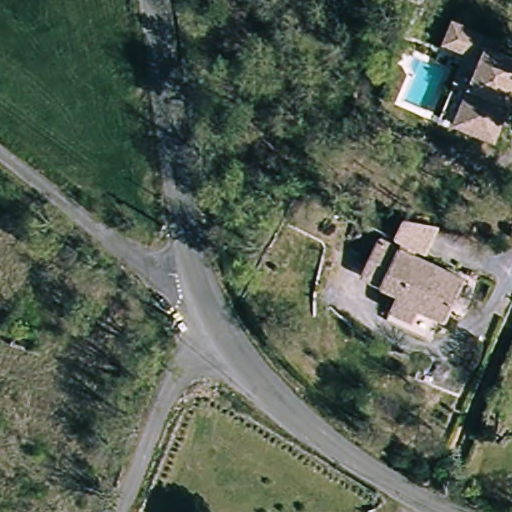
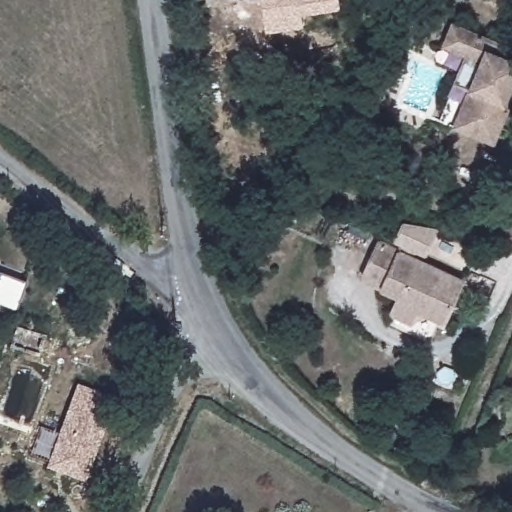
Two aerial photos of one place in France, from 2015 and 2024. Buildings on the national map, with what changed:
new [(340,9),(302,14),(302,26),(266,31),(262,0),(338,0),(340,9)]
unchanged [(482,61),(459,51),(445,46),(453,24),(467,30),(503,44),(499,54),(512,58),(512,102),(510,105),(497,142),(470,132),(455,126),(462,113),(482,61)]
unchanged [(362,277),(378,240),(462,277),(444,318),(417,307),(412,319),(392,310),(400,295),(362,277)]
new [(13,310),(0,305),(0,272),(25,281),(13,310)]
new [(115,398),(83,481),(45,467),(75,382),(115,398)]

